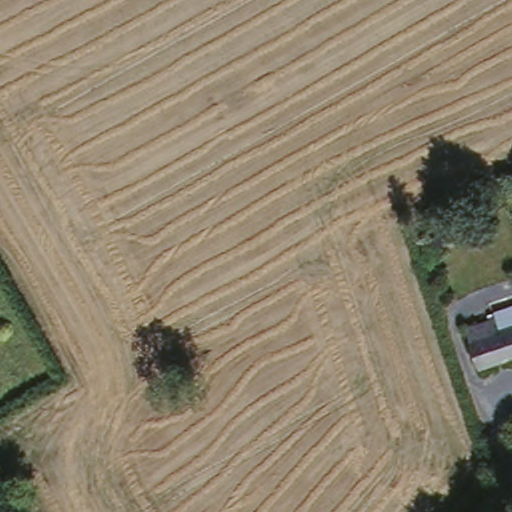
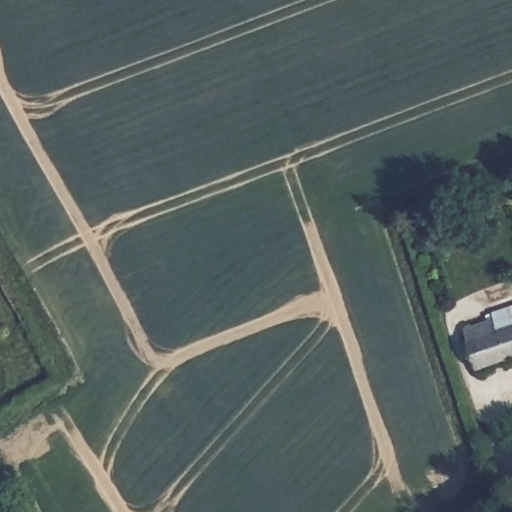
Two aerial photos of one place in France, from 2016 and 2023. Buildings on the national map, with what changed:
unchanged [(462,331),(489,321),(512,314),(512,360),(476,372),(462,331)]

